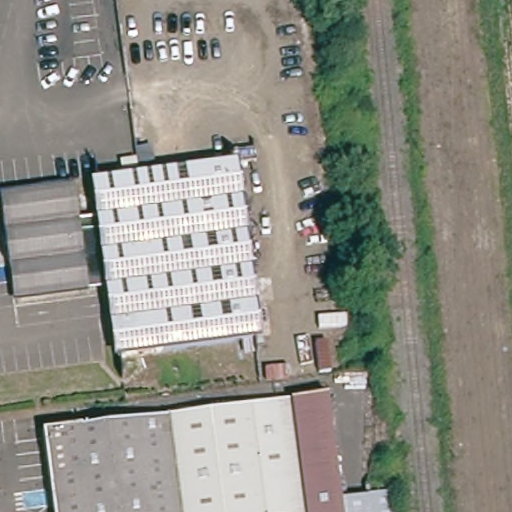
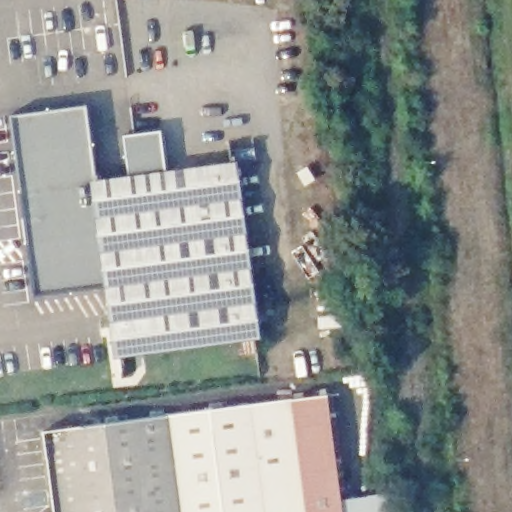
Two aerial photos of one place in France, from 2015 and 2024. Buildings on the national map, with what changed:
new [(103,218),(83,221),(78,186),(13,194),(11,116),(88,106),(99,182),(103,218)]
new [(129,178),(124,135),(161,129),(167,173),(129,178)]
unchanged [(78,186),(83,221),(103,218),(99,182),(235,164),(257,343),(121,361),(113,289),(26,300),(13,194),(78,186)]
unchanged [(292,394),(329,389),(339,459),(339,469),(337,469),(304,474),(292,394)]
unchanged [(100,422),(292,394),(304,474),(309,512),(55,512),(43,431),(43,430),(100,422)]
unchanged [(374,464),(393,461),(397,486),(397,489),(400,512),(347,512),(339,469),(374,464)]
unchanged [(337,469),(339,469),(347,512),(309,512),(304,474),(337,469)]

